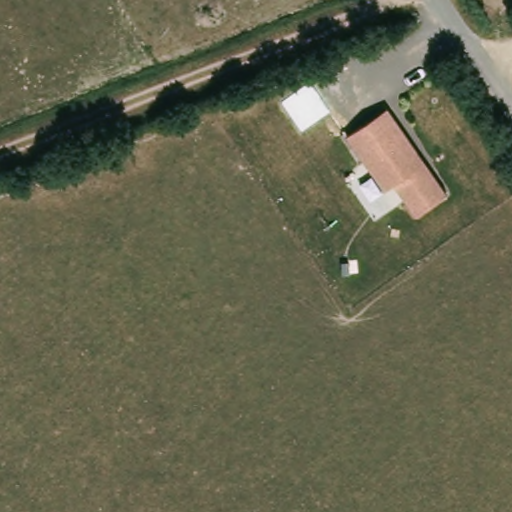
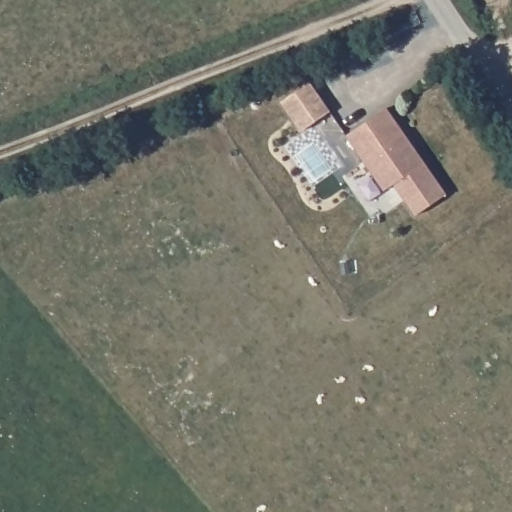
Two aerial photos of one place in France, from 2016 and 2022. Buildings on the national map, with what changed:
new [(302,132),(281,102),(311,80),(331,111),(302,132)]
unchanged [(446,195),(415,218),(391,182),(382,189),(345,135),(385,107),(446,195)]

